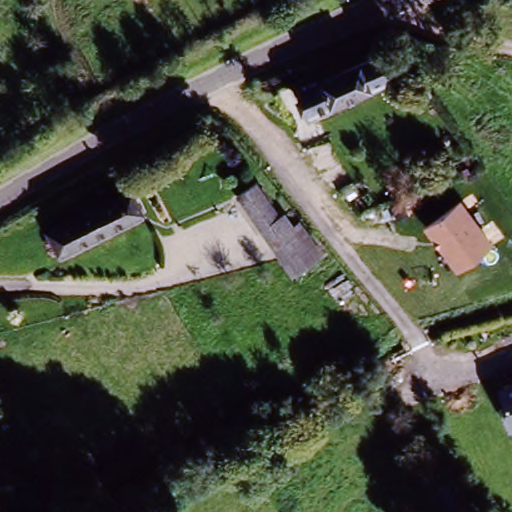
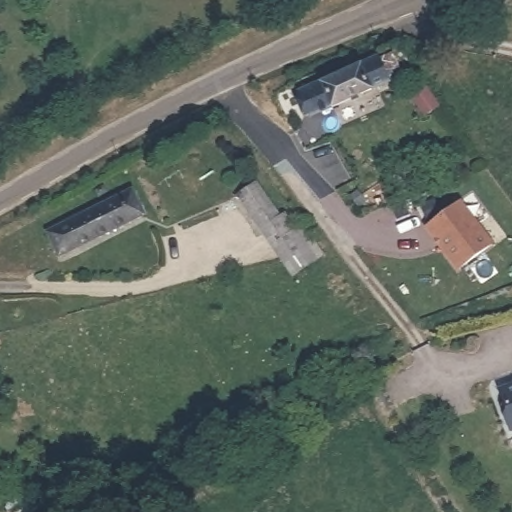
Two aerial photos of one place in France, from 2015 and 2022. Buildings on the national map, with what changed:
unchanged [(305,90),(375,60),(387,87),(315,117),(305,90)]
unchanged [(234,200),(252,187),(278,223),(282,219),(291,232),(312,261),(289,277),(268,249),(234,200)]
unchanged [(141,218),(56,258),(44,233),(130,193),(141,218)]
unchanged [(423,228),(461,198),(493,244),(457,271),(423,228)]
unchanged [(510,433),(503,413),(505,410),(497,391),(512,386),(512,432),(510,433)]

